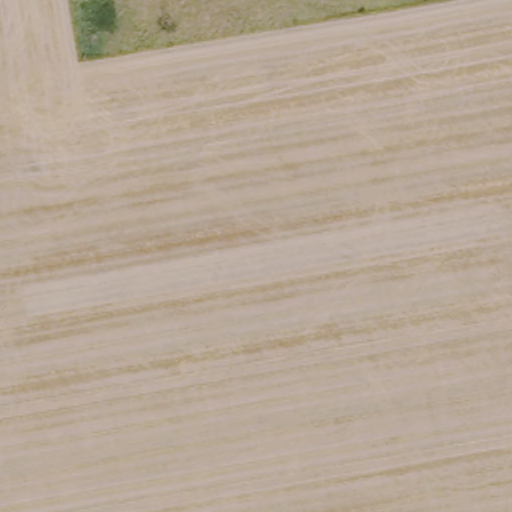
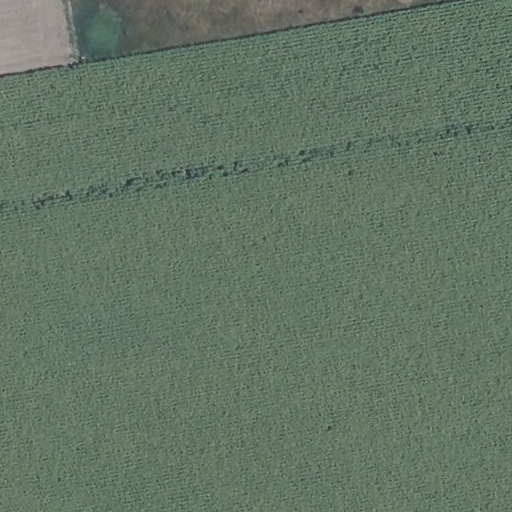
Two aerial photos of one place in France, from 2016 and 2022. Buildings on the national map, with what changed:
[]

